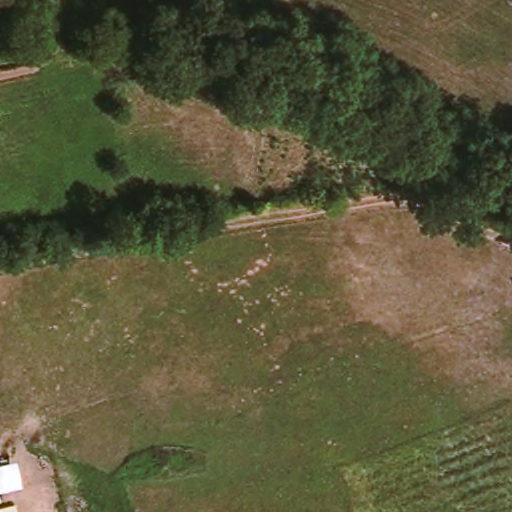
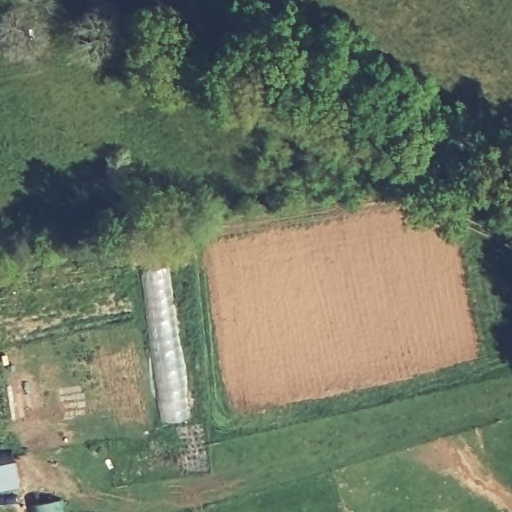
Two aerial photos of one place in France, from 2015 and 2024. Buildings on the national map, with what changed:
new [(189,417),(163,421),(140,267),(167,264),(189,417)]
new [(22,487),(0,490),(0,460),(17,457),(22,487)]
new [(33,512),(31,501),(65,497),(67,512),(33,512)]

